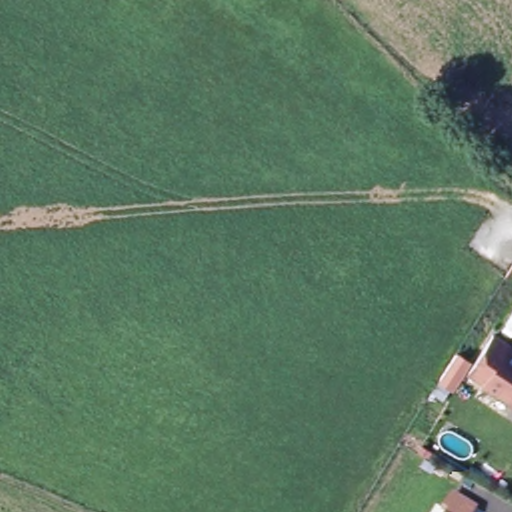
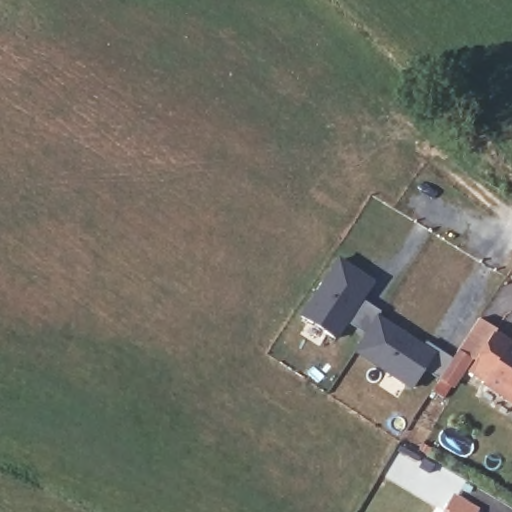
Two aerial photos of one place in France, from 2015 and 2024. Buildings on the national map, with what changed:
new [(440,382),(425,372),(412,390),(357,353),(368,337),(348,323),(337,340),(304,317),(342,261),(376,284),(356,313),(358,316),(367,303),(383,314),(380,319),(424,349),(427,344),(454,361),(440,382)]
unchanged [(484,382),(486,380),(470,370),(495,332),(511,343),(510,345),(512,347),(512,400),(484,382)]
unchanged [(466,512),(447,512),(452,503),(466,512)]

